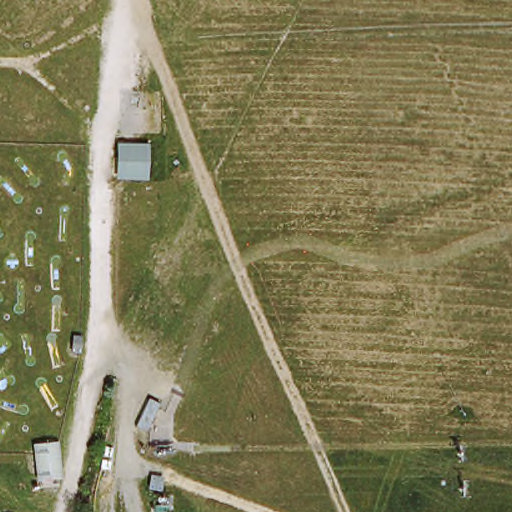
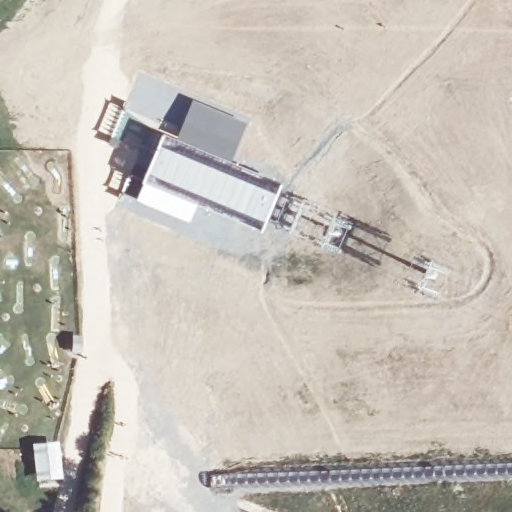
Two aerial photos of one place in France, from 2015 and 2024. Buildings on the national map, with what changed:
new [(139,72),(178,91),(158,127),(121,108),(139,72)]
new [(193,100),(248,122),(231,161),(174,137),(193,100)]
new [(174,137),(231,161),(280,185),(274,205),(263,230),(141,183),(161,133),(174,137)]
demolished [(143,143),(143,174),(124,172),(125,142),(143,143)]
new [(117,144),(149,145),(148,180),(116,179),(117,144)]
unchanged [(148,405),(147,390),(166,388),(162,435),(136,437),(136,411),(148,405)]
unchanged [(61,442),(65,482),(38,485),(34,446),(61,442)]

